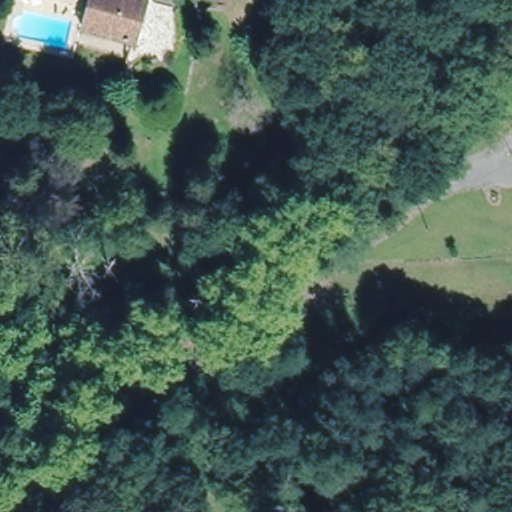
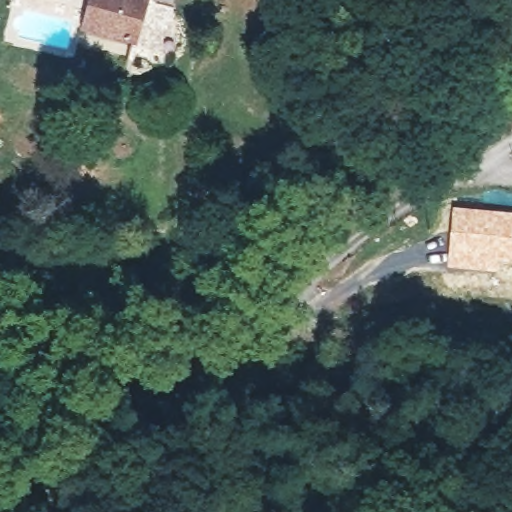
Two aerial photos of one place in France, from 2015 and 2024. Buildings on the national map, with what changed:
unchanged [(81,22),(87,0),(142,0),(133,36),(81,22)]
new [(512,212),(512,265),(508,265),(507,270),(447,267),(452,207),(512,212)]

